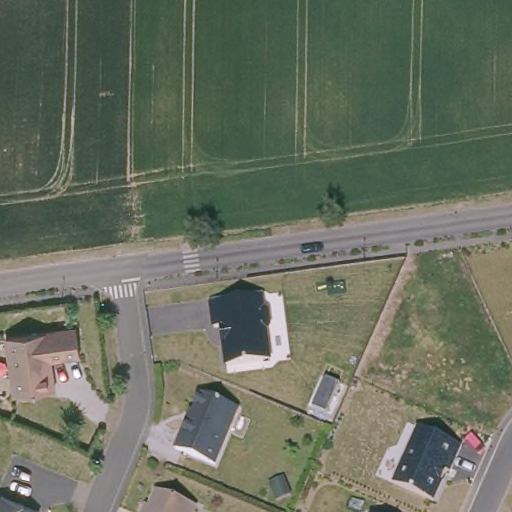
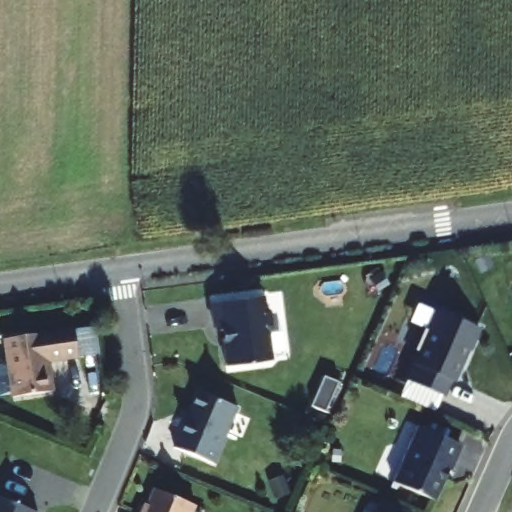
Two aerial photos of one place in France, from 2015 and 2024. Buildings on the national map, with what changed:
unchanged [(257,287),(258,299),(262,302),(265,317),(261,322),(264,344),(257,353),(222,357),(217,318),(209,319),(205,294),(257,287)]
new [(434,412),(397,396),(425,327),(410,321),(418,300),(480,328),(456,382),(452,380),(434,412)]
unchanged [(75,359),(45,362),(49,392),(8,397),(2,339),(71,331),(75,359)]
unchanged [(185,417),(187,419),(199,391),(237,406),(213,463),(173,447),(185,417)]
unchanged [(386,478),(415,420),(458,440),(433,499),(386,478)]
unchanged [(27,512),(0,512),(0,487),(32,500),(27,512)]
unchanged [(145,512),(153,492),(193,509),(192,512),(145,512)]
unchanged [(380,512),(370,512),(372,508),(380,512)]

